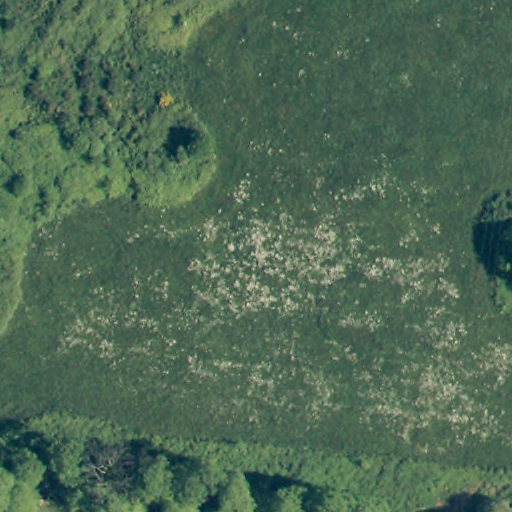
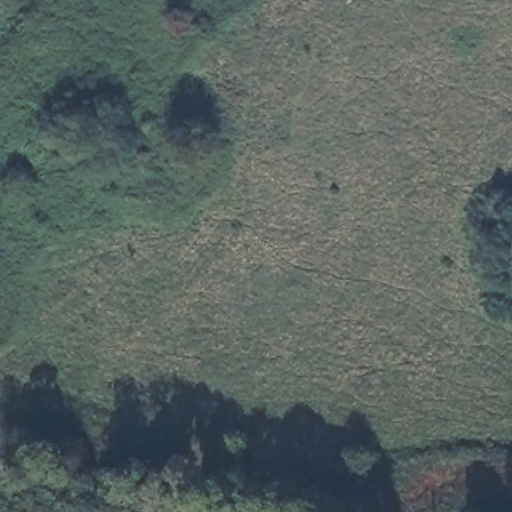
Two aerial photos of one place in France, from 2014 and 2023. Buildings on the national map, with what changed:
[]

